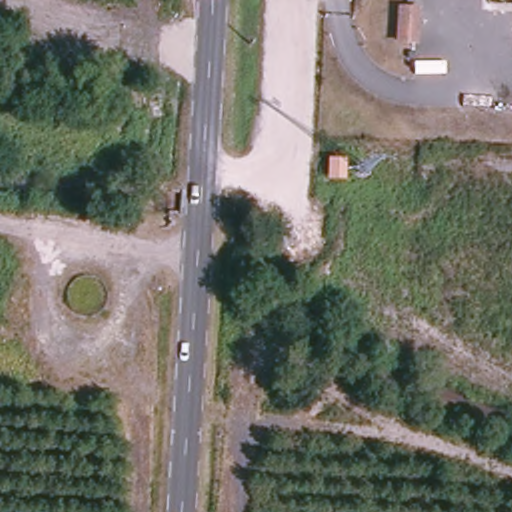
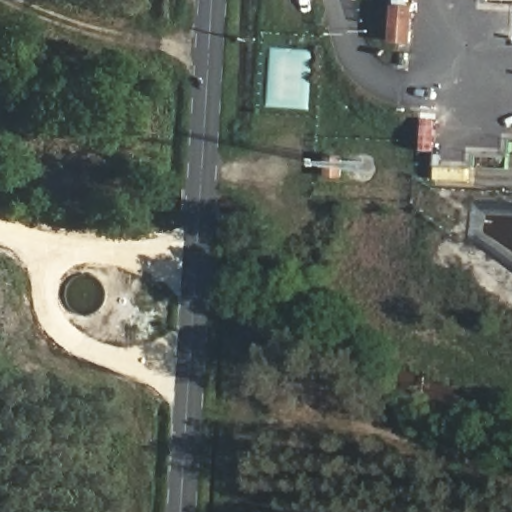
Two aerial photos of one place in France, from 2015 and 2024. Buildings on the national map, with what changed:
unchanged [(397,9),(420,10),(418,46),(395,46),(397,9)]

